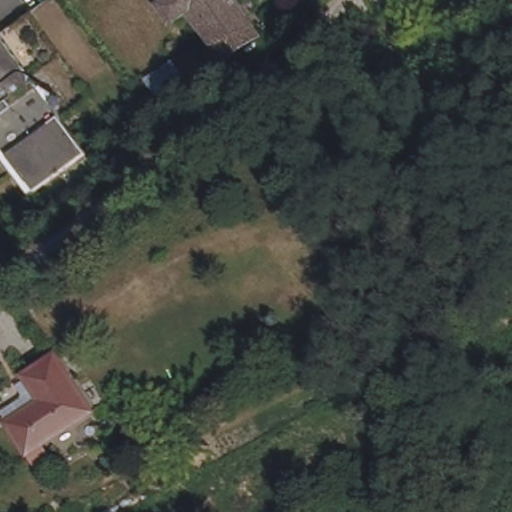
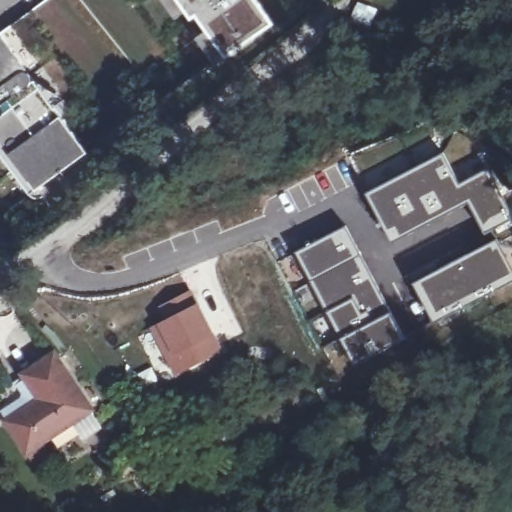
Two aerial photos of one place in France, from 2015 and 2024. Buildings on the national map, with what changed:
demolished [(167,17),(155,0),(234,0),(254,31),(220,56),(184,6),(167,17)]
new [(225,59),(215,65),(197,38),(206,32),(196,17),(190,21),(185,12),(175,20),(161,0),(255,0),(273,26),(225,59)]
unchanged [(25,72),(23,73),(24,75),(26,75),(27,76),(29,78),(30,80),(31,82),(31,87),(34,85),(61,122),(68,132),(85,157),(35,194),(0,147),(0,37),(25,72)]
unchanged [(149,77),(190,47),(207,73),(167,103),(149,77)]
new [(390,238),(366,190),(440,152),(459,184),(489,167),(512,211),(512,217),(485,232),(465,200),(390,238)]
new [(345,227),(390,312),(395,311),(407,338),(355,366),(297,252),(345,227)]
new [(462,246),(467,256),(497,239),(512,266),(512,284),(434,321),(415,284),(410,275),(462,246)]
new [(222,348),(175,372),(151,326),(167,317),(160,303),(190,289),(198,305),(222,348)]
unchanged [(34,463),(27,452),(7,422),(0,412),(19,400),(21,395),(15,386),(27,378),(25,375),(55,355),(91,412),(37,446),(44,456),(34,463)]

